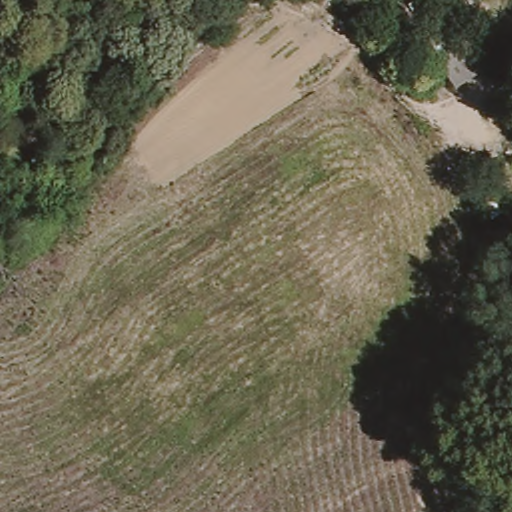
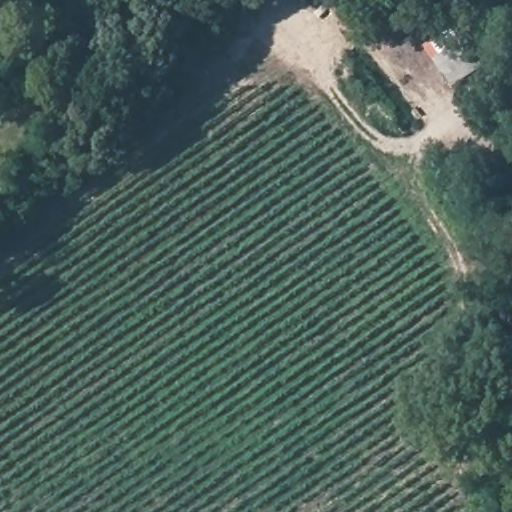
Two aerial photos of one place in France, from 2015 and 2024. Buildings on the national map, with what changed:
unchanged [(203,27),(224,0),(242,0),(244,1),(218,36),(203,27)]
unchanged [(492,66),(456,88),(436,62),(477,37),(492,66)]

